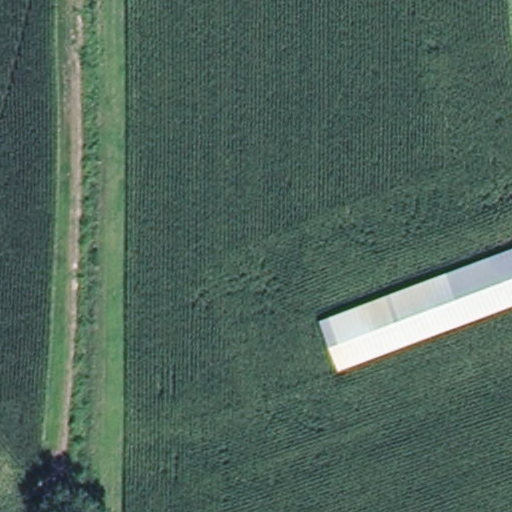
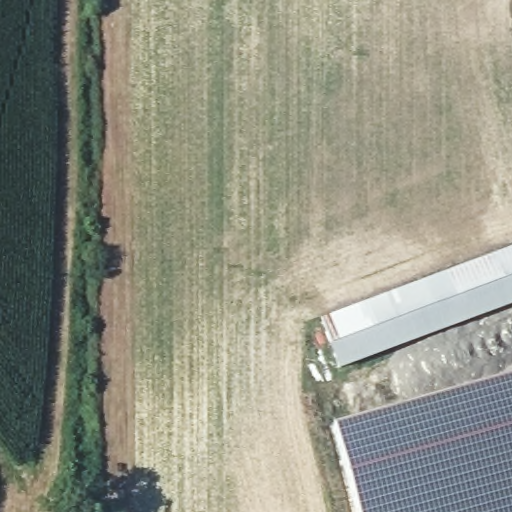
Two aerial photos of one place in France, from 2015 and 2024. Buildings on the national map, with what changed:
unchanged [(314,319),(512,247),(512,303),(336,371),(314,319)]
new [(352,423),(471,386),(512,375),(512,512),(355,512),(347,484),(340,450),(360,443),(352,423)]

